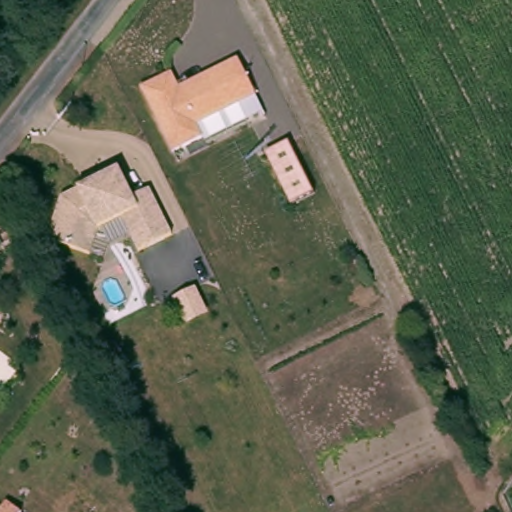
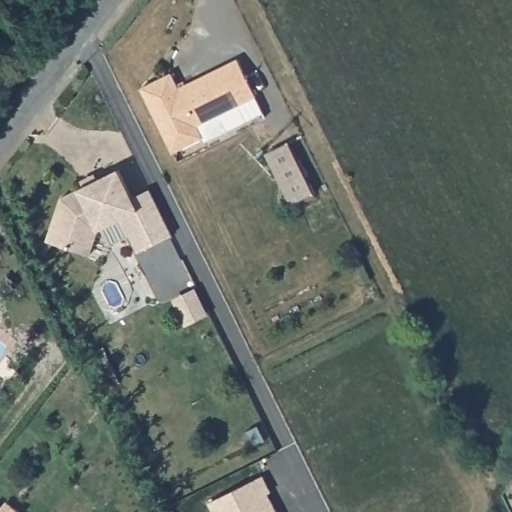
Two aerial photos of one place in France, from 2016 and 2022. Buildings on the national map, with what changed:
unchanged [(146,82),(179,66),(187,81),(244,53),(262,92),(203,121),(208,134),(177,149),(146,82)]
unchanged [(266,153),(290,141),(313,192),(291,203),(266,153)]
unchanged [(53,236),(69,190),(129,161),(141,191),(160,182),(181,232),(143,249),(129,217),(106,225),(99,251),(53,236)]
new [(272,491),(269,493),(278,512),(215,512),(210,502),(264,475),(272,491)]

